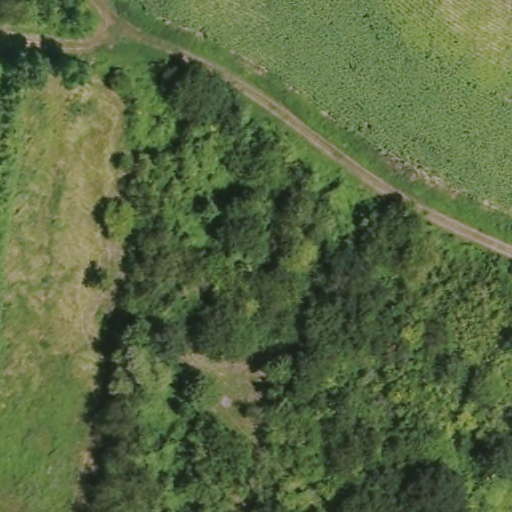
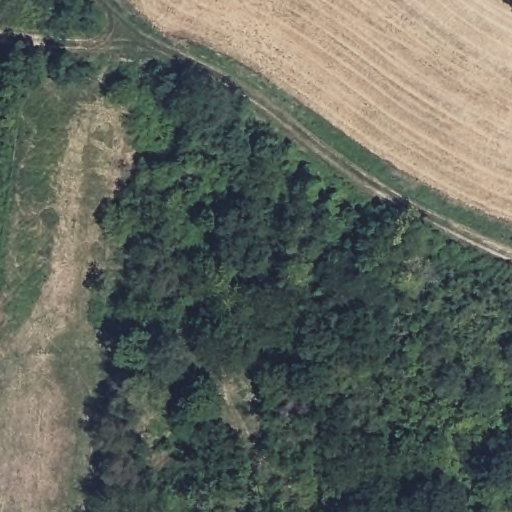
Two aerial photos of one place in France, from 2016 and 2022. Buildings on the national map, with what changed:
unchanged [(24,45),(39,47),(38,60),(22,59),(24,45)]

